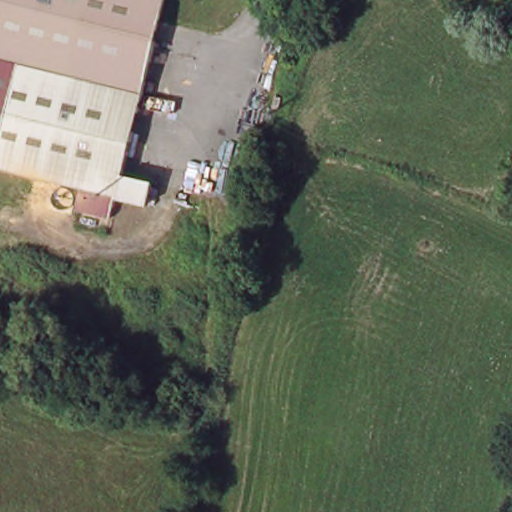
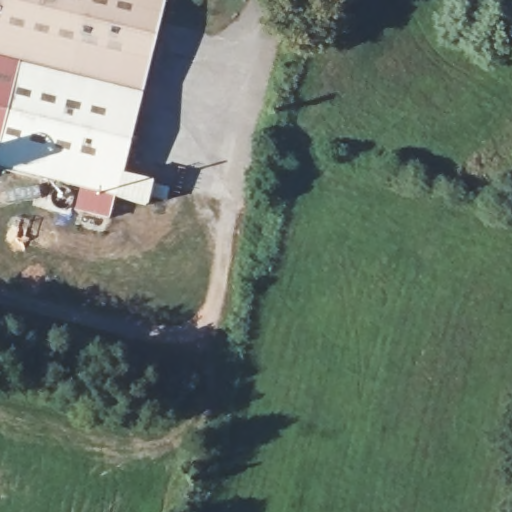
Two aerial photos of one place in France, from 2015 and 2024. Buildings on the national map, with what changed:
unchanged [(0,109),(15,58),(0,53),(0,0),(169,0),(114,176),(146,186),(139,208),(0,166),(0,109)]
unchanged [(0,109),(0,53),(15,58),(0,109)]
unchanged [(281,100),(279,109),(270,106),(274,97),(281,100)]

